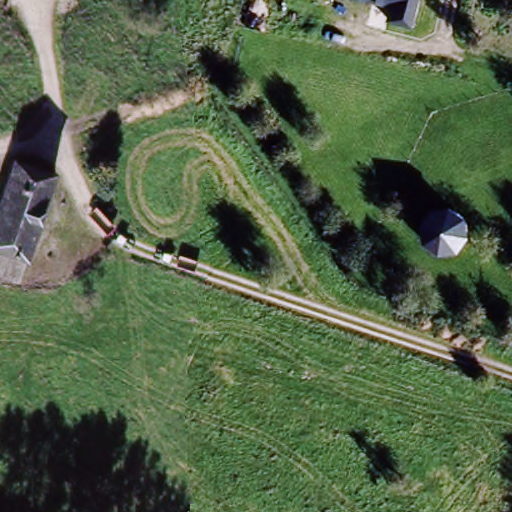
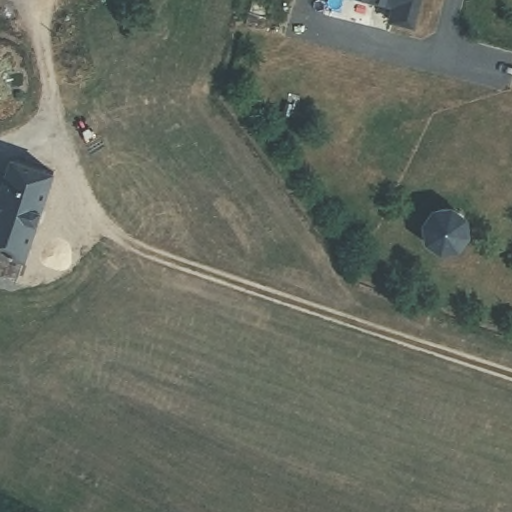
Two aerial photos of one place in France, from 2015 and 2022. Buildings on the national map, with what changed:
unchanged [(415,30),(388,24),(391,9),(351,0),(421,0),(415,30)]
unchanged [(54,177),(25,265),(22,264),(15,285),(0,280),(0,190),(9,162),(54,177)]
unchanged [(450,214),(466,225),(470,245),(460,260),(440,263),(425,251),(421,232),(432,217),(450,214)]

